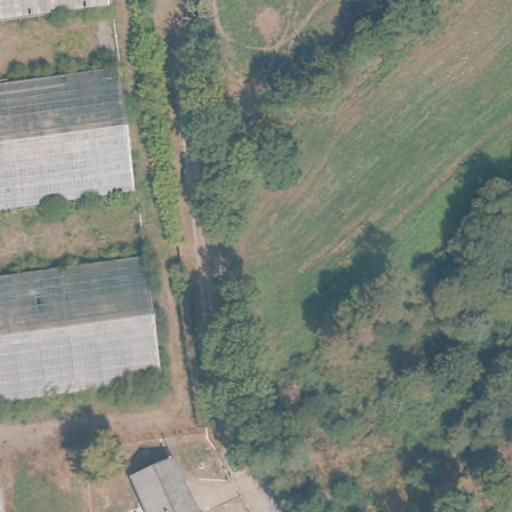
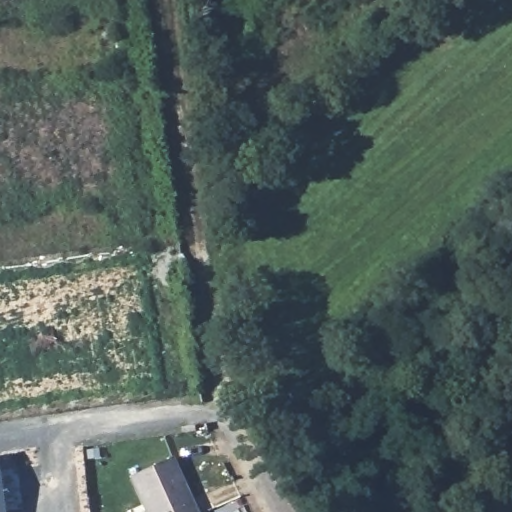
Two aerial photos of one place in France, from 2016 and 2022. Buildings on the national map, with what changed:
demolished [(112,0),(0,17),(0,0),(112,0)]
demolished [(134,188),(0,206),(0,82),(115,67),(134,188)]
demolished [(160,376),(0,400),(0,278),(144,257),(160,376)]
unchanged [(129,474),(172,453),(200,509),(193,512),(149,512),(129,474)]
unchanged [(7,512),(0,512),(0,468),(7,512)]
unchanged [(200,509),(202,512),(193,512),(200,509)]

